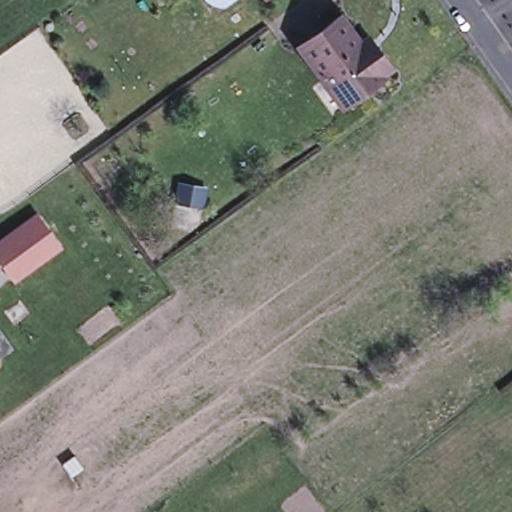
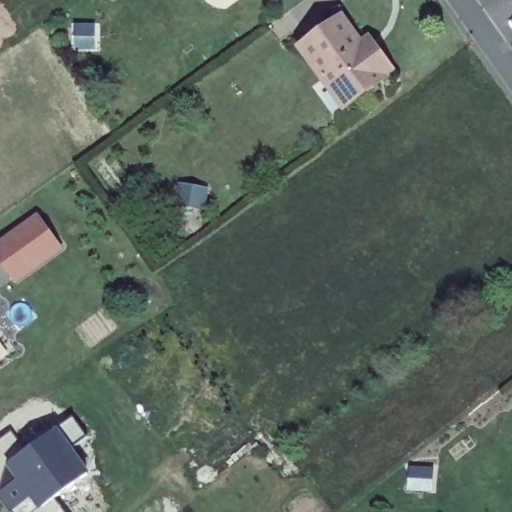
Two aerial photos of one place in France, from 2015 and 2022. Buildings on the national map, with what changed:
unchanged [(311,59),(301,45),(341,15),(353,30),(362,43),(370,37),(378,47),(392,66),(384,72),(386,75),(354,98),(345,104),(333,88),(311,59)]
unchanged [(37,214),(65,251),(17,287),(0,262),(0,242),(37,214)]
new [(25,452),(71,416),(88,436),(69,450),(85,474),(53,498),(64,512),(12,512),(10,511),(15,507),(4,490),(0,493),(0,439),(11,432),(25,452)]

